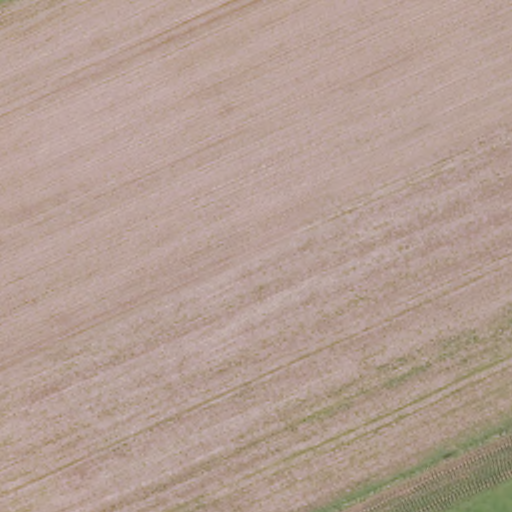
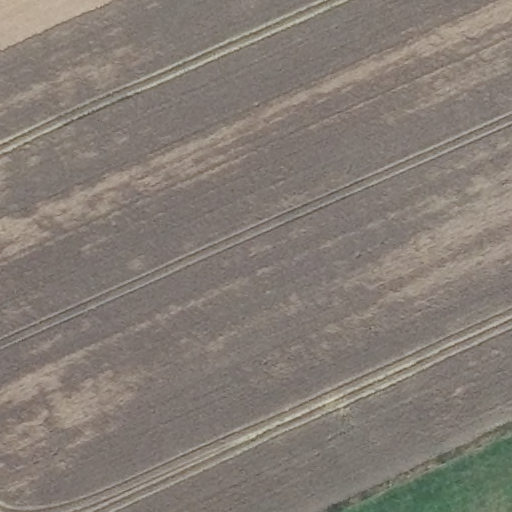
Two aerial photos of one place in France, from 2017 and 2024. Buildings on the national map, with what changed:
[]

